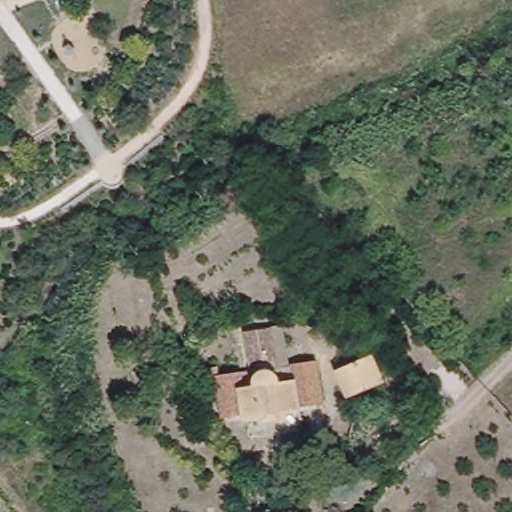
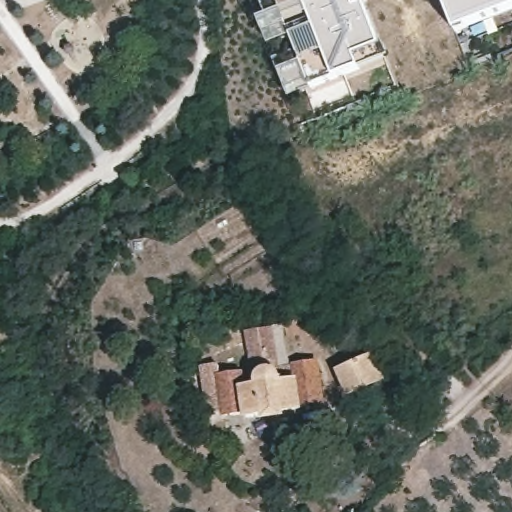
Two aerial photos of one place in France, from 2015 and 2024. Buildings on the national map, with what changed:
new [(288,97),(250,0),(277,0),(311,88),(288,97)]
new [(311,88),(277,0),(363,0),(386,59),(311,88)]
new [(444,0),(512,0),(512,8),(455,30),(444,0)]
unchanged [(322,394),(302,397),(304,405),(245,414),(245,409),(225,411),(224,405),(210,407),(204,364),(219,363),(221,374),(252,369),(245,327),(273,323),(284,320),(292,363),(318,360),(322,394)]
unchanged [(373,358),(384,381),(348,397),(338,373),(373,358)]

